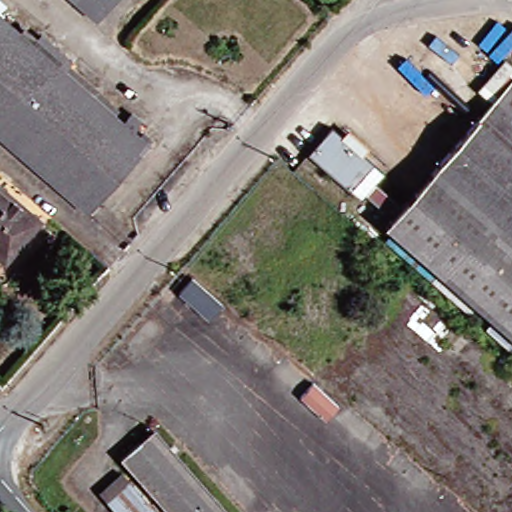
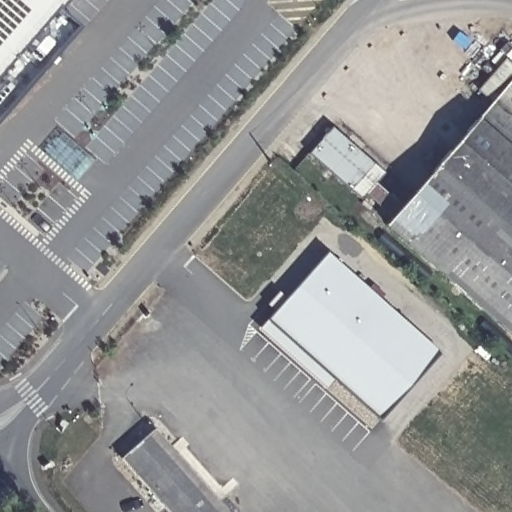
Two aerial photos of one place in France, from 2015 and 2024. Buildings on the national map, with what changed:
new [(0,0),(76,0),(0,88),(0,0)]
demolished [(0,20),(0,9),(5,14),(0,20)]
demolished [(38,41),(60,60),(51,69),(117,128),(127,117),(140,128),(130,139),(140,148),(84,212),(0,138),(0,25),(30,51),(38,41)]
unchanged [(380,218),(511,76),(512,76),(512,339),(380,218)]
unchanged [(371,169),(351,192),(312,156),(333,134),(371,169)]
demolished [(0,252),(0,191),(30,216),(0,252)]
new [(327,390),(260,330),(275,312),(267,305),(280,291),(287,298),(328,252),(387,304),(384,307),(393,315),(396,312),(440,351),(378,420),(335,382),(327,390)]
demolished [(191,274),(220,301),(207,316),(177,290),(191,274)]
demolished [(170,330),(140,367),(118,348),(147,314),(170,330)]
demolished [(330,382),(302,414),(262,379),(290,347),(330,382)]
demolished [(335,419),(353,402),(389,434),(375,452),(335,419)]
unchanged [(225,512),(158,512),(114,463),(150,430),(225,512)]
demolished [(400,448),(440,482),(426,497),(386,466),(400,448)]
demolished [(263,499),(249,512),(244,512),(213,479),(229,464),(263,499)]
demolished [(150,512),(112,512),(95,491),(117,474),(150,512)]
demolished [(271,511),(272,512),(270,512),(271,511)]

